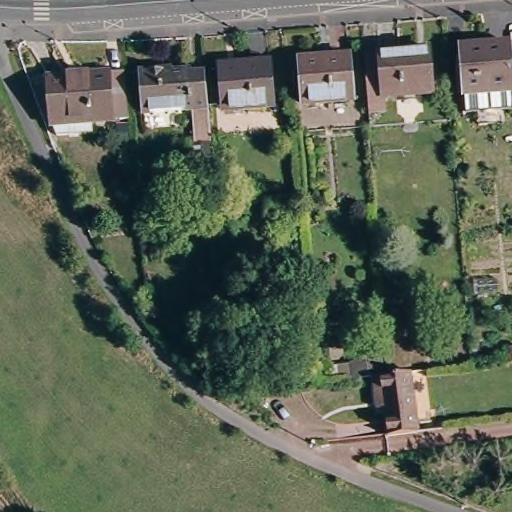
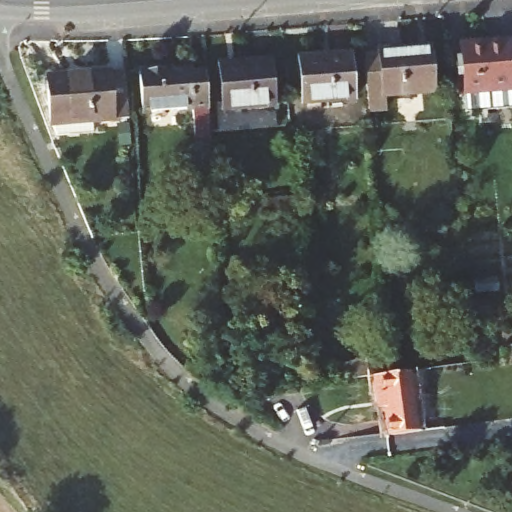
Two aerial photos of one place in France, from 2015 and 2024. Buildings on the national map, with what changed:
unchanged [(497,103),(497,111),(477,112),(477,99),(465,100),(464,82),(457,82),(455,52),(462,52),(460,34),(510,30),(510,35),(512,35),(512,61),(512,97),(485,99),(485,104),(497,103)]
unchanged [(369,54),(384,52),(384,50),(434,47),(438,91),(390,94),(390,107),(374,109),(369,54)]
unchanged [(349,54),(352,99),(302,102),(300,57),(349,54)]
unchanged [(270,60),(272,105),(223,109),(220,64),(270,60)]
unchanged [(194,131),(192,107),(142,111),(140,69),(170,66),(170,70),(189,69),(190,73),(205,72),(210,130),(194,131)]
unchanged [(57,132),(50,117),(47,75),(109,72),(125,71),(129,116),(112,117),(90,120),(90,131),(57,132)]
unchanged [(382,402),(377,402),(372,369),(352,372),(350,357),(381,353),(383,367),(392,367),(407,365),(415,428),(387,432),(382,402)]

